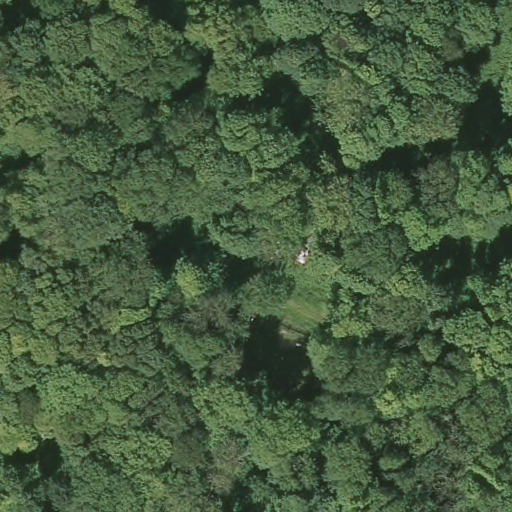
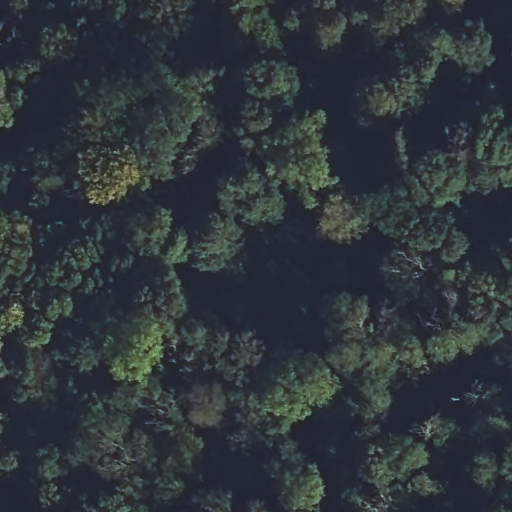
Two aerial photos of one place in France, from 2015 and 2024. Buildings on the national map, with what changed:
unchanged [(180,177),(176,195),(160,195),(161,176),(180,177)]

